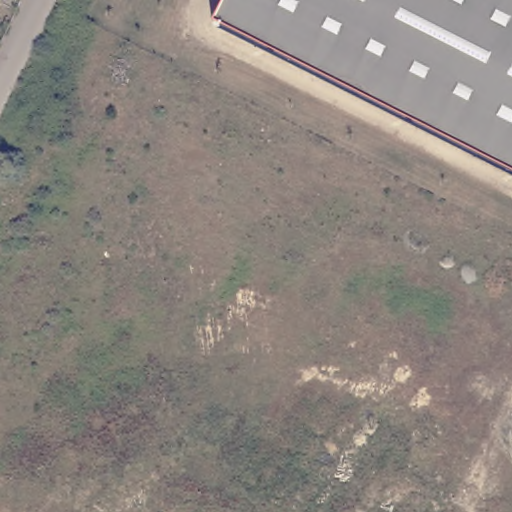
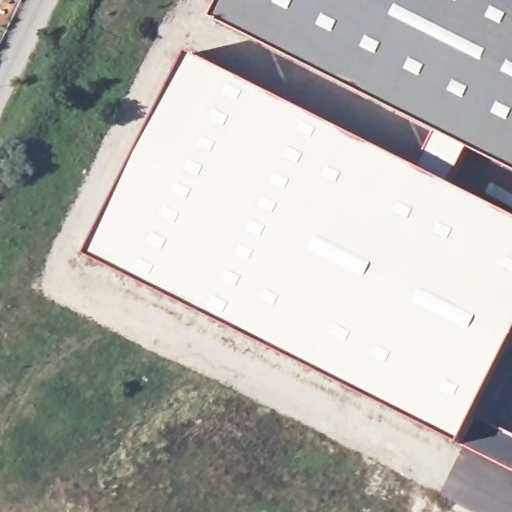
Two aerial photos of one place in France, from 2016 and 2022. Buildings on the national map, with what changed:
unchanged [(212,19),(221,0),(512,0),(512,171),(212,19)]
new [(192,54),(420,167),(437,132),(467,148),(450,183),(512,214),(512,345),(508,352),(512,354),(512,371),(486,422),(512,435),(512,471),(461,443),(89,257),(192,54)]

